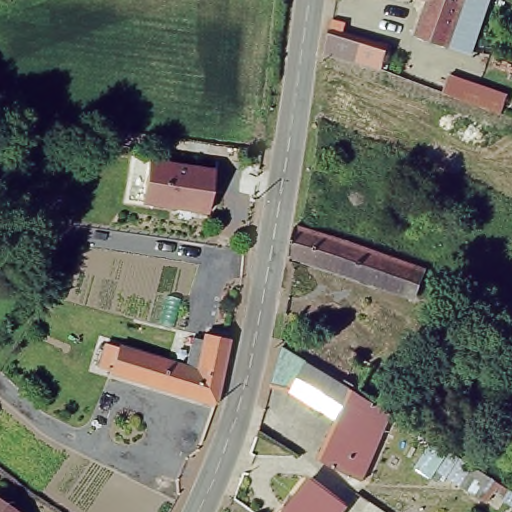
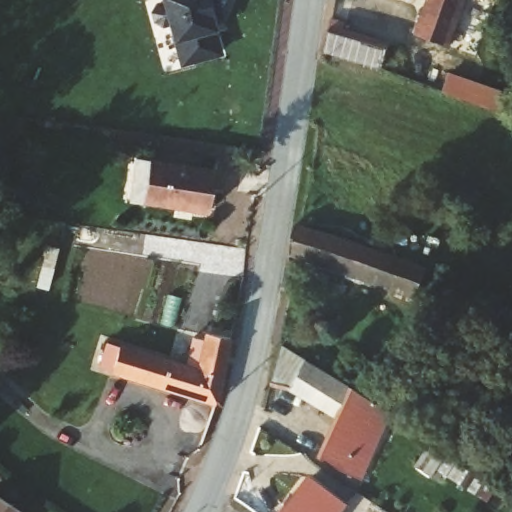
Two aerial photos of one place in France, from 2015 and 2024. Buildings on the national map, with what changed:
new [(172,42),(168,27),(161,28),(152,21),(150,10),(156,3),(161,2),(160,0),(219,0),(226,28),(217,30),(223,55),(179,67),(172,42)]
unchanged [(445,41),(408,29),(418,0),(462,0),(445,41)]
unchanged [(466,43),(463,48),(445,41),(462,0),(485,0),(466,43)]
unchanged [(339,21),(338,30),(385,47),(377,71),(320,52),(327,16),(339,21)]
unchanged [(503,112),(473,101),(435,88),(441,71),(478,85),(509,94),(503,112)]
unchanged [(221,172),(214,215),(148,204),(155,161),(221,172)]
unchanged [(288,224),(453,290),(443,312),(284,249),(288,224)]
unchanged [(182,365),(194,371),(184,392),(111,360),(99,355),(96,353),(107,330),(120,336),(163,356),(182,365)]
unchanged [(192,345),(199,347),(204,333),(225,338),(218,380),(209,403),(184,392),(194,371),(182,365),(192,345)]
unchanged [(354,472),(317,453),(343,404),(289,383),(286,392),(268,387),(279,350),(371,384),(387,393),(398,401),(385,427),(360,475),(354,472)]
unchanged [(484,475),(473,491),(456,481),(451,490),(426,475),(442,448),(484,475)]
unchanged [(280,506),(301,474),(335,495),(339,497),(329,512),(281,512),(284,508),(280,506)]
unchanged [(0,498),(0,496),(1,496),(0,498)]
unchanged [(0,512),(0,498),(1,496),(22,512),(0,512)]

